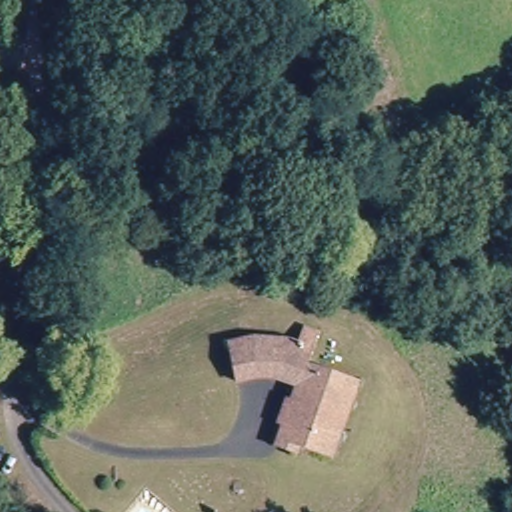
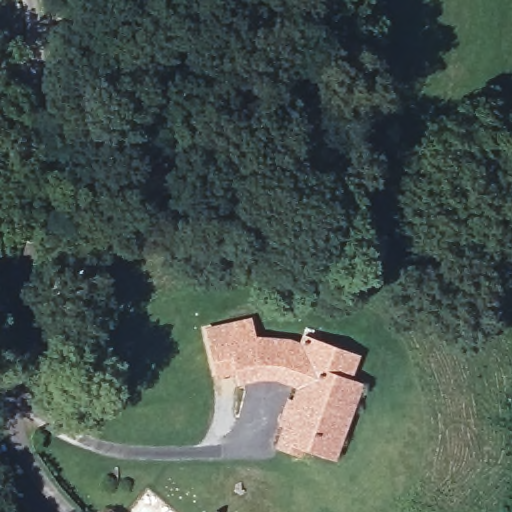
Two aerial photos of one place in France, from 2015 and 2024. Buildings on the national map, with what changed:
unchanged [(334,456),(304,444),(301,455),(279,446),(286,429),(280,425),(285,415),(291,398),(298,400),(303,385),(280,377),(265,376),(252,378),(239,381),(231,343),(265,335),(297,348),(299,340),(317,348),(309,368),(358,384),(349,406),(341,434),(334,456)]

